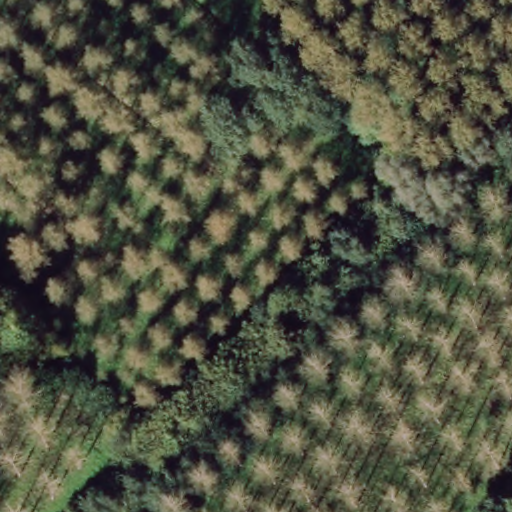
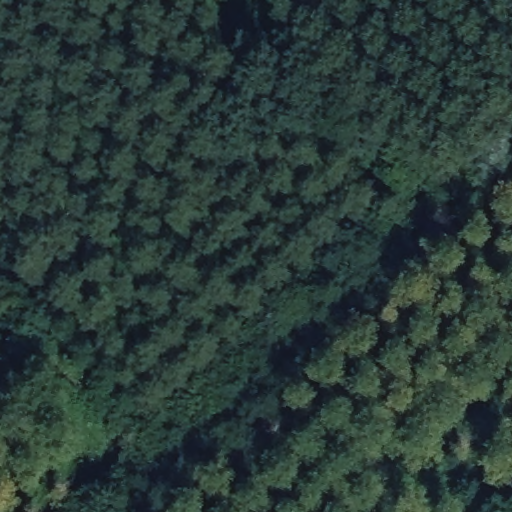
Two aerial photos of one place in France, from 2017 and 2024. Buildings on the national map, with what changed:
[]

